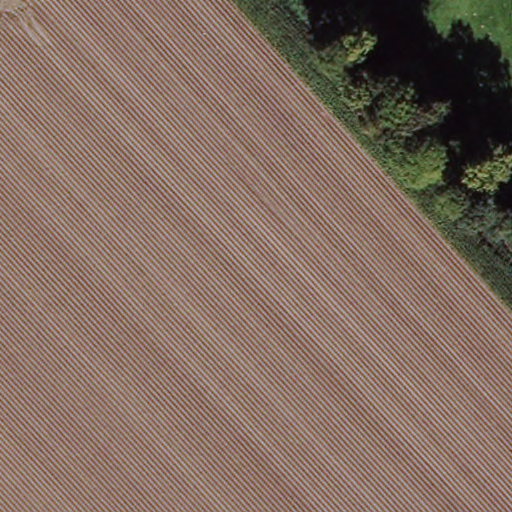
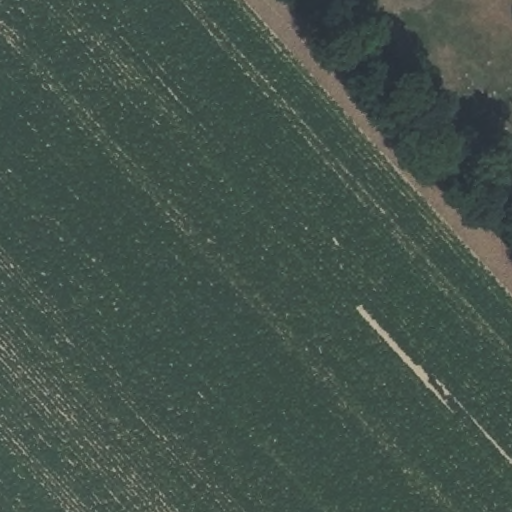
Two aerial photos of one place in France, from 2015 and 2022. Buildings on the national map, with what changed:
[]

